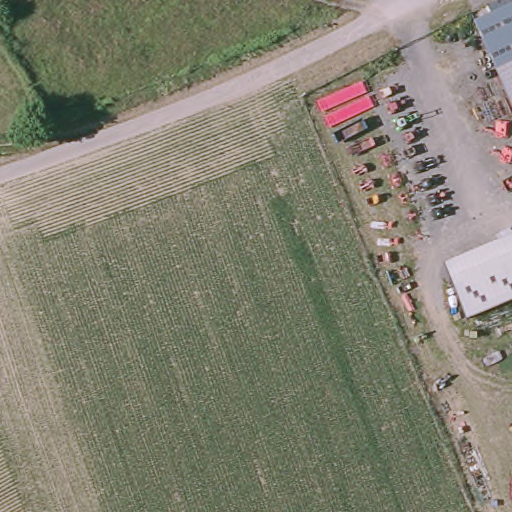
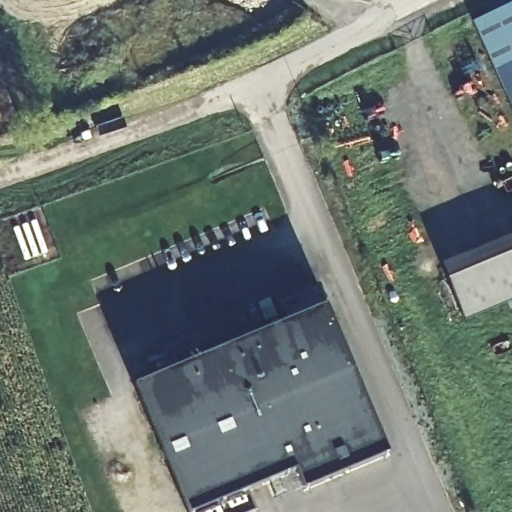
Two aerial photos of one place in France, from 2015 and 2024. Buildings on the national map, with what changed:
unchanged [(500,67),(497,69),(479,22),(512,7),(512,62),(500,67)]
unchanged [(497,69),(500,67),(512,62),(512,104),(497,69)]
unchanged [(466,319),(443,263),(512,235),(512,300),(466,319)]
new [(126,380),(171,364),(162,342),(207,326),(216,344),(316,303),(375,446),(291,482),(284,466),(230,488),(239,506),(222,512),(178,512),(126,380)]

